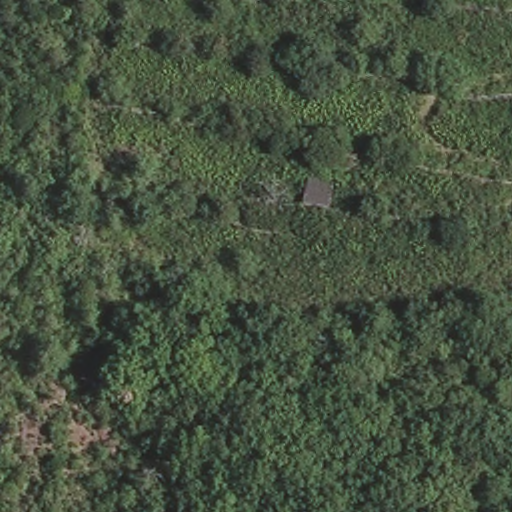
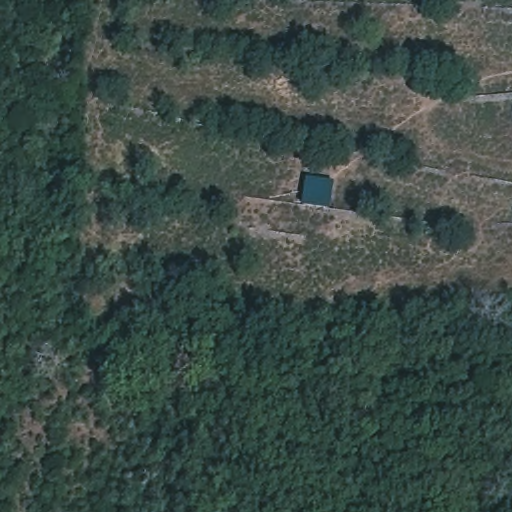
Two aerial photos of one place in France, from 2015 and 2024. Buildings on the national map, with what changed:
unchanged [(333,209),(300,205),(301,177),(333,181),(333,209)]

